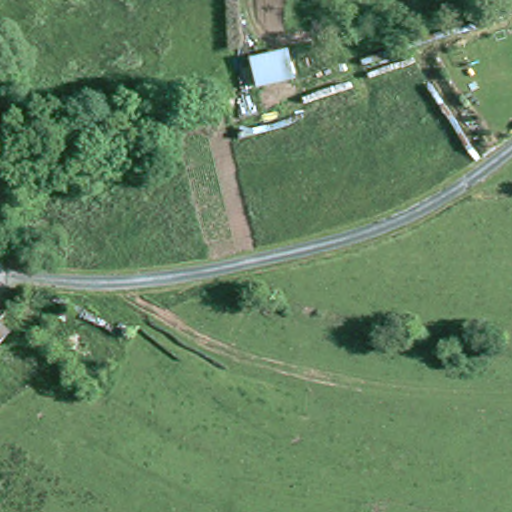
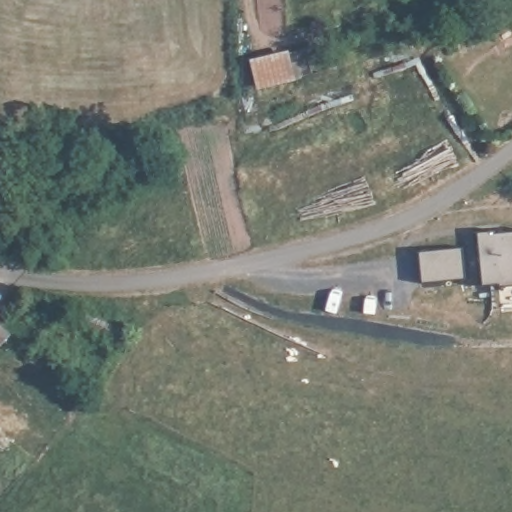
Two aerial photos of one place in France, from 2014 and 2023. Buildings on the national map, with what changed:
unchanged [(251,63),(285,53),(292,78),(259,88),(251,63)]
new [(494,234),(512,232),(512,285),(501,286),(501,282),(483,283),(479,232),(494,231),(494,234)]
new [(466,278),(423,282),(420,252),(464,247),(466,278)]

